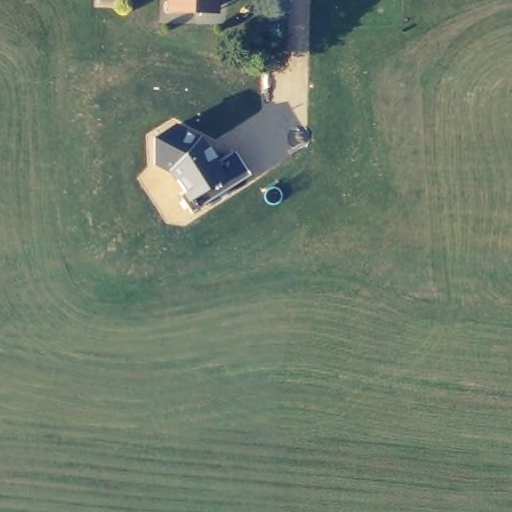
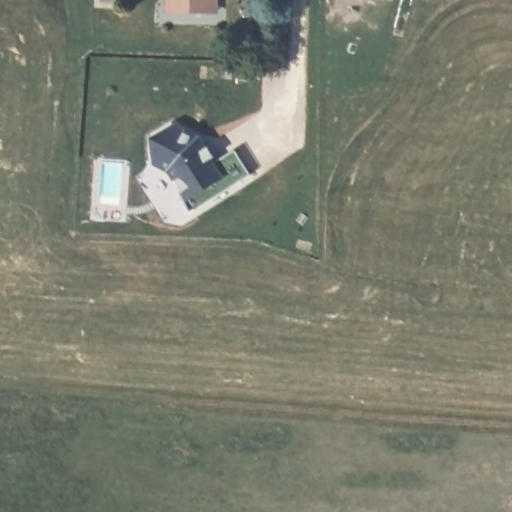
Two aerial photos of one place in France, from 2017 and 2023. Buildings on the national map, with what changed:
unchanged [(165,11),(167,0),(213,0),(212,15),(207,14),(165,11)]
unchanged [(180,195),(182,193),(167,172),(153,164),(151,139),(175,124),(202,139),(216,161),(236,151),(249,175),(192,212),(180,195)]

